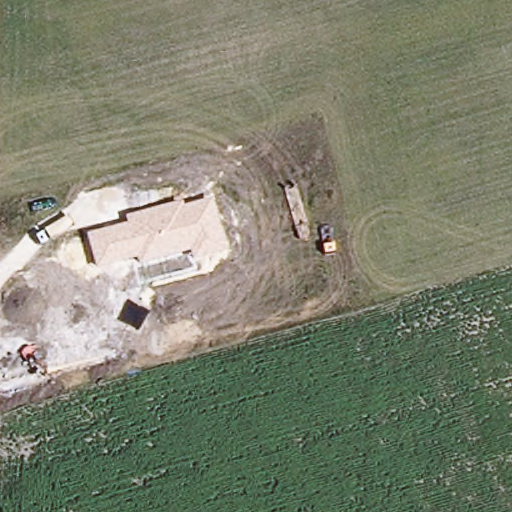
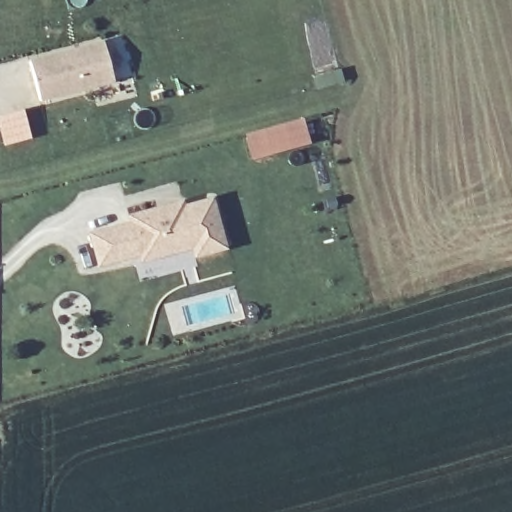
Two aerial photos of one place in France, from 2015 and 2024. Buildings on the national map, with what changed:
new [(30,56),(102,35),(114,74),(40,94),(30,56)]
new [(305,116),(312,141),(254,157),(247,133),(305,116)]
unchanged [(127,223),(125,215),(182,201),(184,207),(214,199),(226,251),(191,260),(190,252),(136,265),(135,258),(95,269),(87,234),(127,223)]

